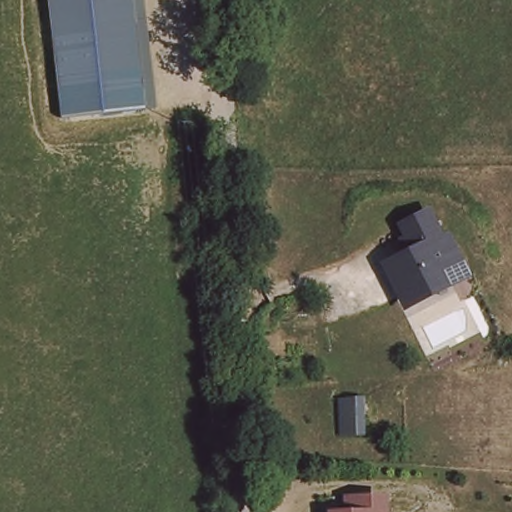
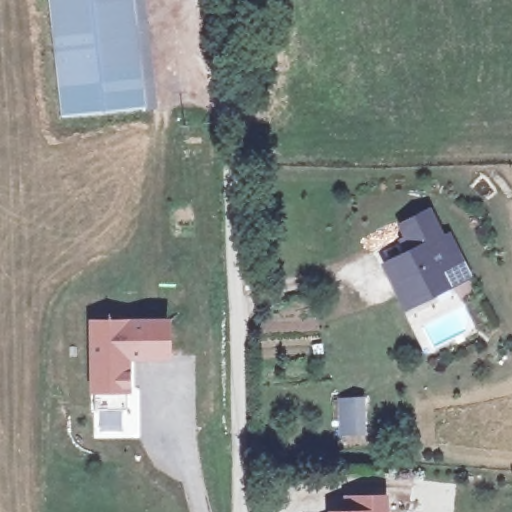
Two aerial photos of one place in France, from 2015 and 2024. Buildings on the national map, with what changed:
unchanged [(56,115),(53,0),(141,0),(143,117),(56,115)]
unchanged [(407,309),(382,262),(407,246),(397,219),(430,205),(444,235),(452,232),(475,280),(407,309)]
new [(129,318),(170,317),(172,361),(131,362),(133,394),(122,394),(125,410),(91,410),(86,320),(129,318)]
unchanged [(326,508),(347,508),(347,492),(390,495),(391,512),(326,512),(326,508)]

